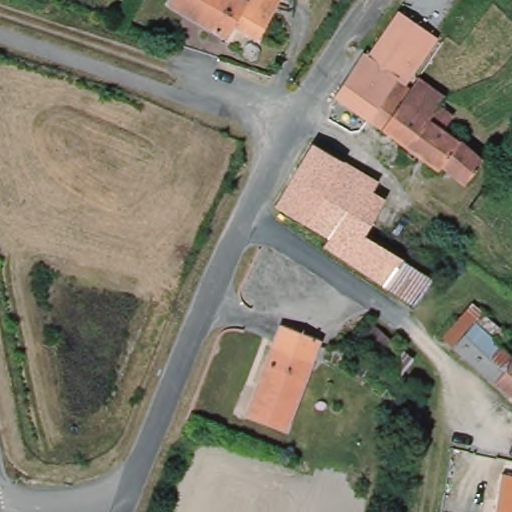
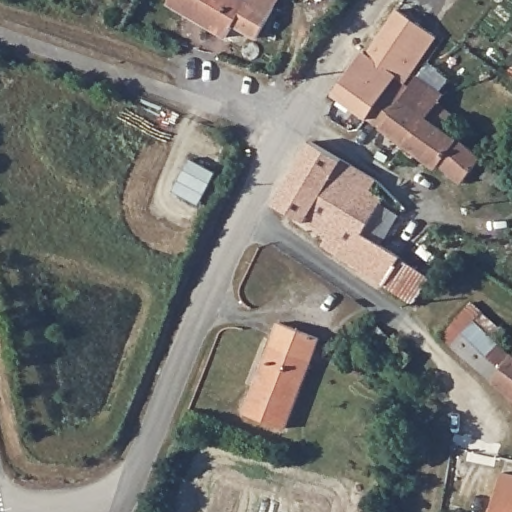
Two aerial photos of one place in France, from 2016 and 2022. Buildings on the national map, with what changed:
unchanged [(263,38),(238,24),(228,37),(170,5),(173,0),(283,0),(263,38)]
unchanged [(371,52),(375,55),(403,13),(440,39),(408,86),(414,89),(421,78),(448,97),(443,105),(458,115),(448,130),(462,139),(463,137),(489,155),(472,181),(447,163),(444,168),(341,95),(371,52)]
unchanged [(317,143),(381,183),(377,191),(388,198),(365,233),(406,258),(388,286),(325,245),(330,238),(277,205),(317,143)]
unchanged [(433,276),(415,303),(388,286),(406,258),(433,276)]
unchanged [(457,349),(446,337),(473,299),(489,313),(482,321),(512,347),(512,399),(495,387),(457,349)]
unchanged [(358,341),(373,322),(419,360),(401,379),(358,341)]
unchanged [(325,341),(291,431),(250,416),(284,326),(325,341)]
unchanged [(512,512),(496,512),(503,474),(512,475),(512,512)]

